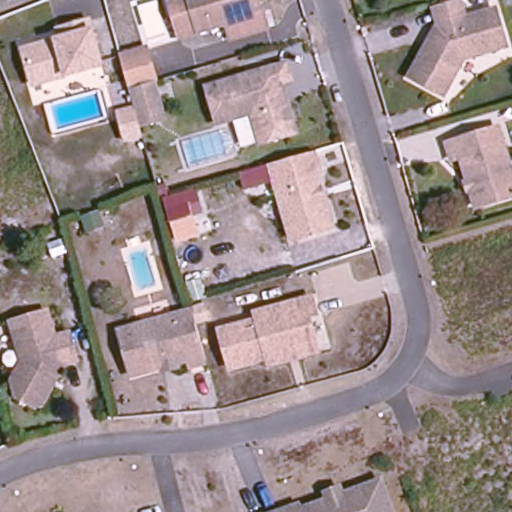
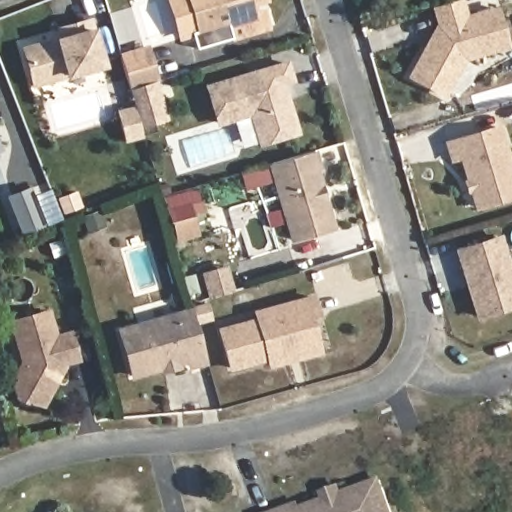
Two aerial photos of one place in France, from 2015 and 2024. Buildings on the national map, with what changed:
unchanged [(223,21),(194,30),(186,0),(255,0),(247,3),(250,13),(259,10),(263,26),(227,36),(223,21)]
unchanged [(440,0),(459,0),(463,14),(494,6),(504,43),(461,55),(441,91),(407,72),(424,43),(432,29),(436,22),(431,3),(440,0)]
unchanged [(104,68),(64,78),(30,86),(18,46),(51,37),(59,35),(56,25),(89,16),(93,26),(104,68)]
unchanged [(145,45),(167,121),(139,130),(115,54),(145,45)]
unchanged [(282,63),(287,79),(272,84),(275,96),(281,99),(289,126),(284,134),(254,141),(246,111),(213,121),(203,85),(282,63)]
unchanged [(497,126),(512,181),(512,194),(473,206),(459,155),(449,157),(444,141),(497,126)]
unchanged [(287,242),(265,165),(287,159),(309,153),(314,171),(311,172),(316,189),(319,199),(328,230),(287,242)]
unchanged [(198,187),(206,218),(177,226),(169,196),(198,187)]
new [(28,195),(47,189),(59,220),(40,227),(22,235),(8,197),(26,190),(28,195)]
new [(500,233),(512,272),(512,306),(474,320),(451,248),(500,233)]
unchanged [(264,367),(262,359),(224,369),(214,332),(252,322),(250,314),(307,299),(312,317),(304,319),(309,339),(313,354),(264,367)]
unchanged [(76,358),(61,364),(54,378),(51,376),(48,383),(39,401),(33,403),(14,392),(10,377),(21,357),(9,317),(45,307),(53,333),(68,329),(76,358)]
unchanged [(128,378),(115,332),(188,312),(190,321),(202,364),(185,368),(184,362),(171,366),(172,369),(159,369),(128,378)]
unchanged [(326,503),(324,496),(339,490),(342,497),(379,484),(389,512),(300,512),(326,503)]
unchanged [(299,508),(300,511),(300,512),(286,512),(299,508)]

